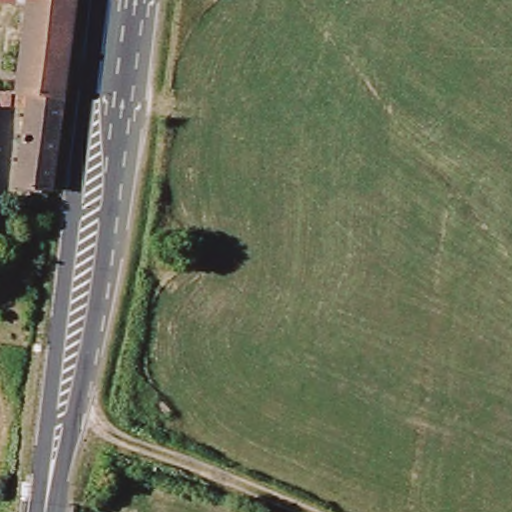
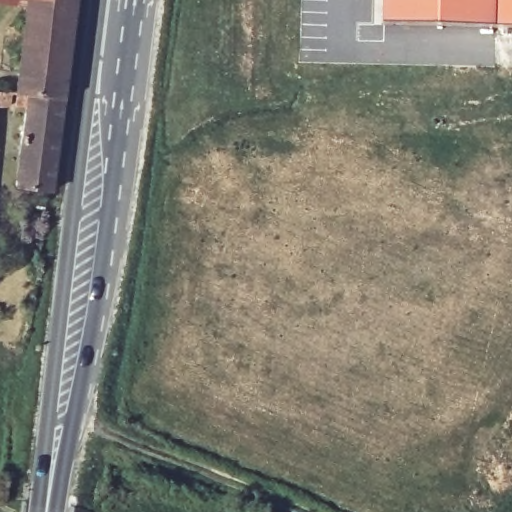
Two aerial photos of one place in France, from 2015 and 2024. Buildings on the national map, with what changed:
unchanged [(50,7),(51,0),(89,0),(61,198),(22,190),(37,113),(16,110),(0,186),(0,90),(36,94),(50,7)]
unchanged [(36,5),(36,4),(4,0),(51,0),(50,7),(36,5)]
new [(386,23),(386,0),(497,0),(496,27),(386,23)]

